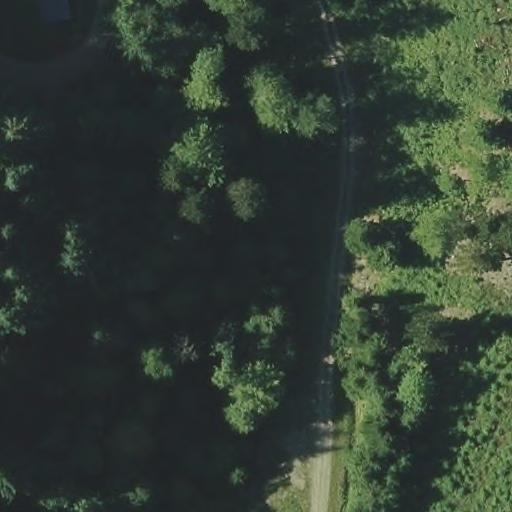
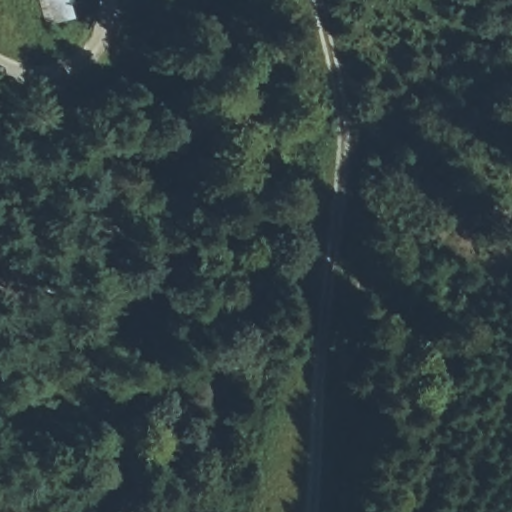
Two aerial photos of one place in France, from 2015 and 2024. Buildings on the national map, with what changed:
unchanged [(66,2),(37,8),(35,0),(66,0),(66,2)]

